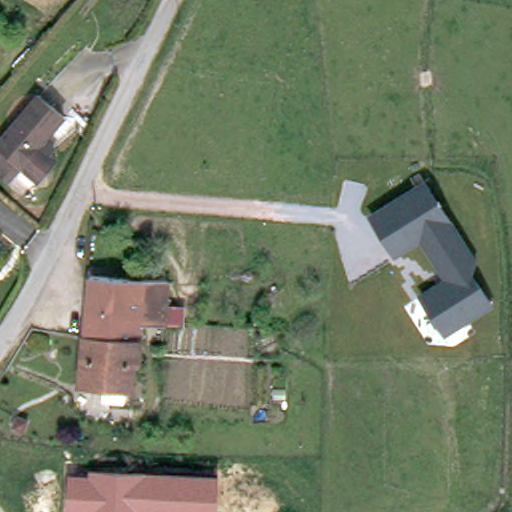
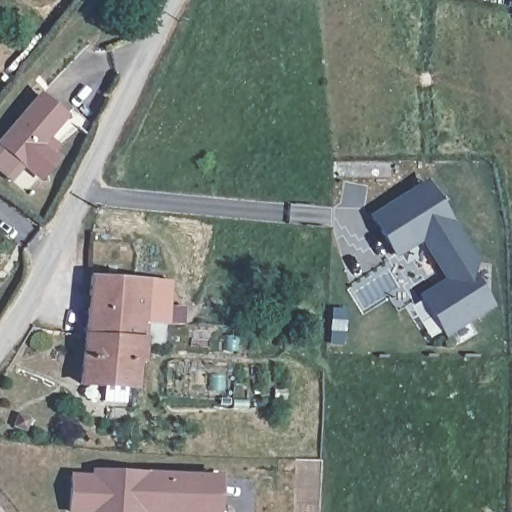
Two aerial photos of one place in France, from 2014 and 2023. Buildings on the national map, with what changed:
unchanged [(33,159),(21,174),(0,158),(0,149),(50,90),(75,110),(51,139),(67,152),(50,173),(33,159)]
unchanged [(481,268),(477,272),(493,308),(447,332),(421,288),(438,276),(417,238),(393,252),(367,211),(427,176),(481,268)]
unchanged [(146,340),(143,359),(136,358),(133,383),(110,381),(108,393),(98,392),(98,379),(86,378),(95,272),(171,278),(189,279),(187,318),(185,345),(146,340)]
unchanged [(90,474),(90,467),(221,474),(219,512),(68,512),(68,473),(90,474)]

